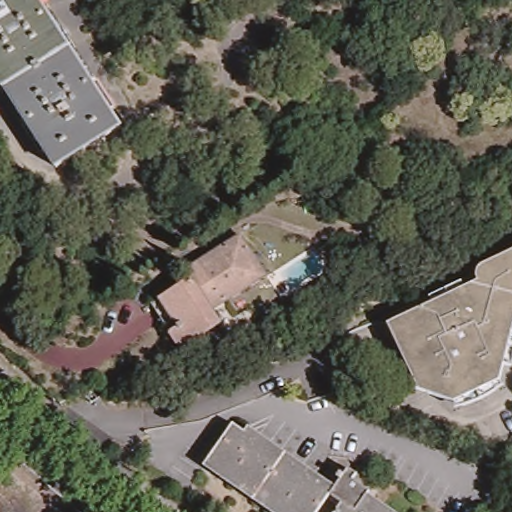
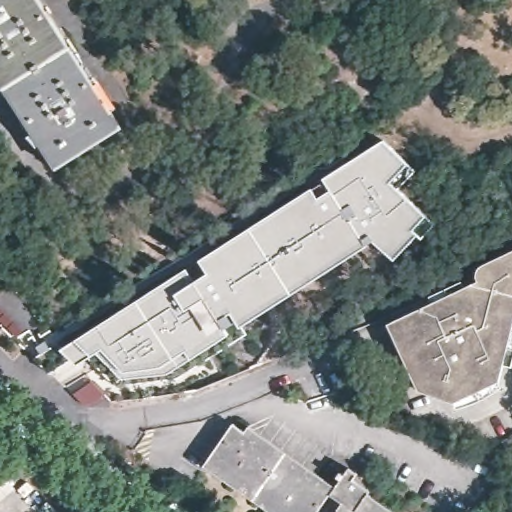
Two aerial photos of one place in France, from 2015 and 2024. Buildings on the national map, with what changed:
unchanged [(87,72),(124,129),(60,171),(0,78),(0,0),(42,0),(87,72)]
new [(77,339),(199,258),(384,140),(407,162),(390,182),(426,215),(412,230),(419,234),(394,260),(373,242),(240,326),(236,321),(225,328),(228,335),(192,358),(188,351),(161,367),(124,372),(102,348),(93,354),(78,364),(62,349),(77,339)]
demolished [(215,311),(223,325),(182,350),(155,307),(193,282),(187,273),(243,239),(268,278),(225,305),(215,311)]
unchanged [(491,393),(481,399),(468,404),(456,407),(453,402),(418,390),(386,323),(431,302),(429,296),(460,281),(463,287),(477,280),(476,279),(476,277),(475,275),(476,272),(477,267),(479,266),(484,263),(512,249),(512,360),(511,366),(502,363),(498,380),(501,386),(491,393)]
unchanged [(378,512),(343,512),(345,509),(330,500),(321,512),(265,512),(241,495),(206,471),(236,427),(321,486),(334,467),(349,478),(353,472),(378,488),(368,505),(378,512)]

